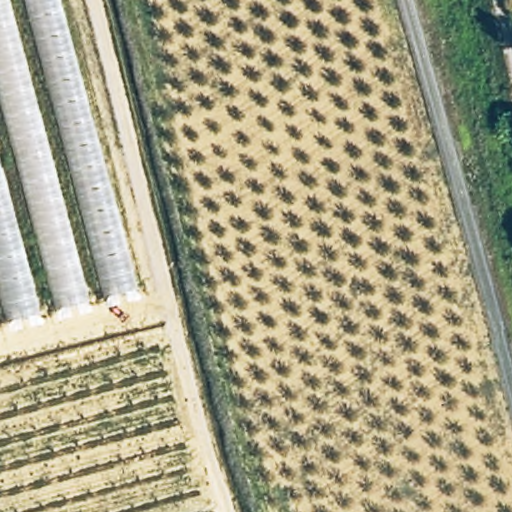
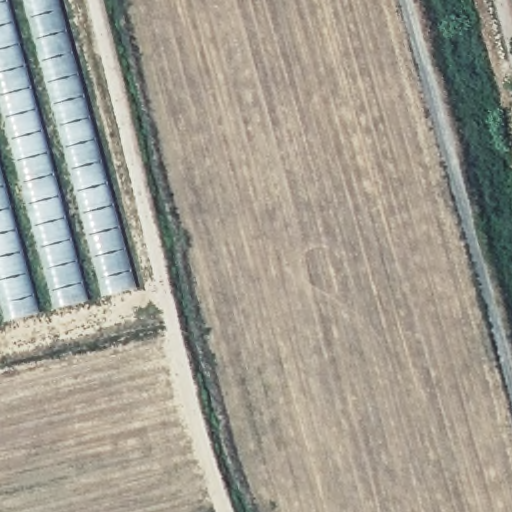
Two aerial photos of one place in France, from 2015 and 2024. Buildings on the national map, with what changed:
unchanged [(0,324),(0,0),(59,0),(137,288),(0,324)]

